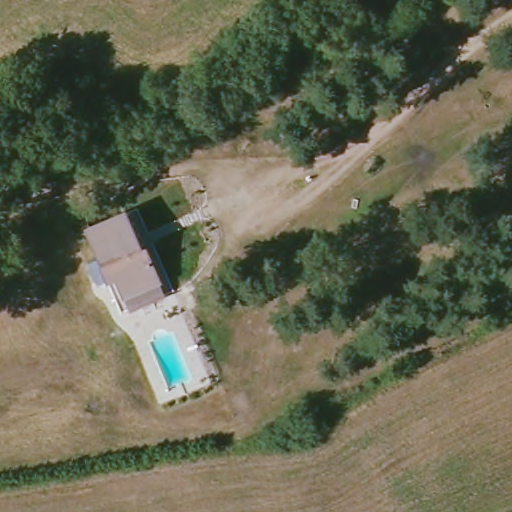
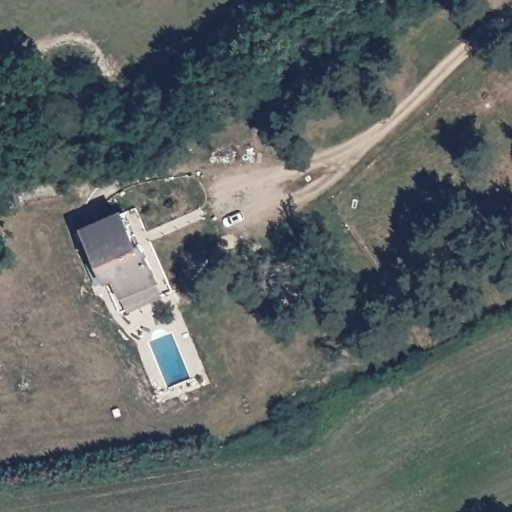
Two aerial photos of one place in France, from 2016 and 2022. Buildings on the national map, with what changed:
unchanged [(122,218),(136,247),(143,245),(162,284),(116,307),(83,236),(122,218)]

